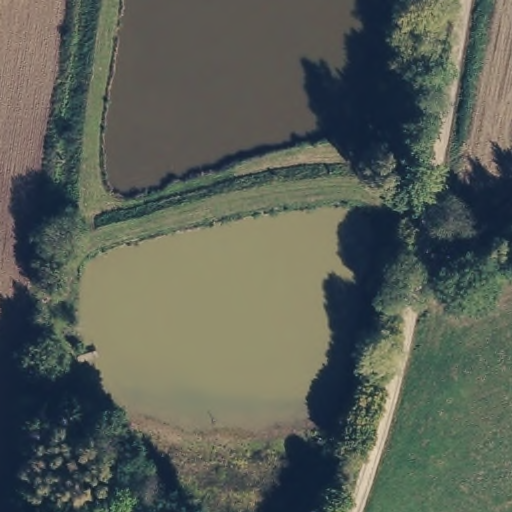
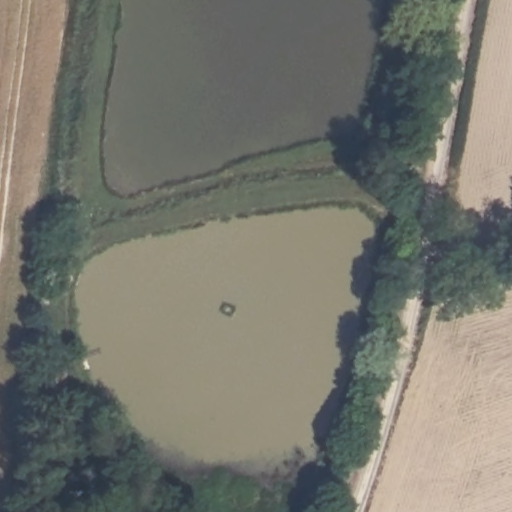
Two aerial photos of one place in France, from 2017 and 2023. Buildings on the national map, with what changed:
unchanged [(71,371),(70,398),(33,400),(33,370),(71,371)]

